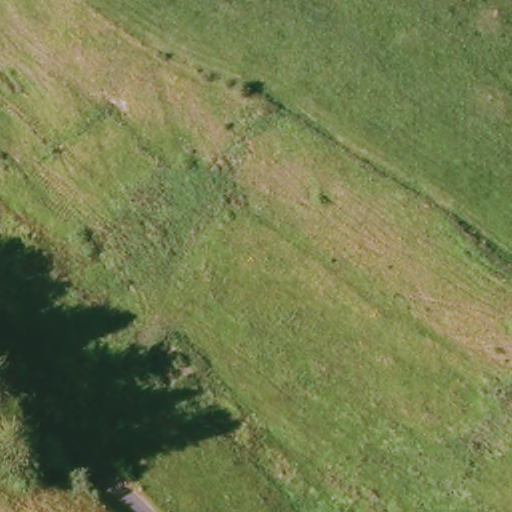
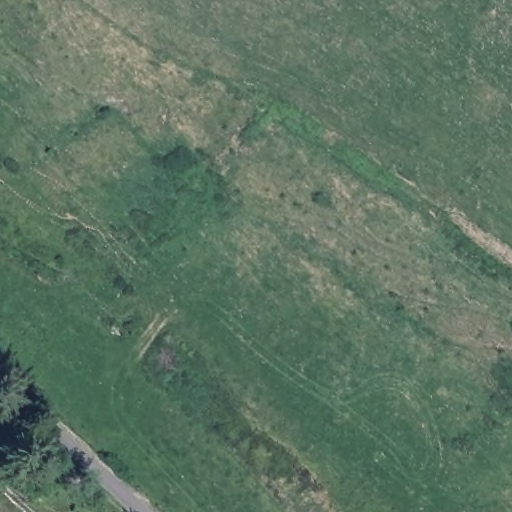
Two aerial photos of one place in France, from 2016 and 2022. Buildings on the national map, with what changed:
[]

